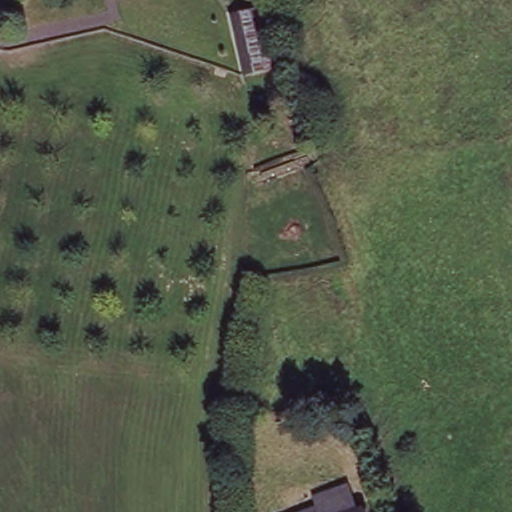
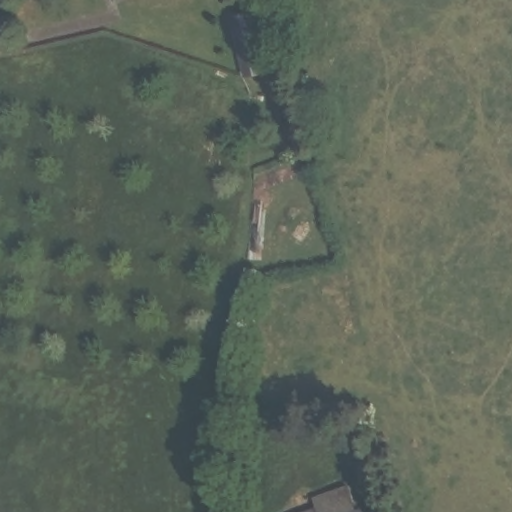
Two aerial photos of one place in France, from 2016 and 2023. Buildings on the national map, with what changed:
unchanged [(261,9),(275,68),(245,74),(231,16),(261,9)]
unchanged [(317,500),(315,497),(350,482),(363,512),(290,512),(317,500)]

